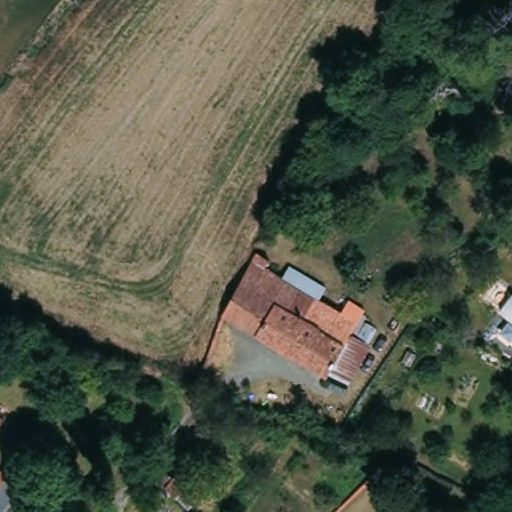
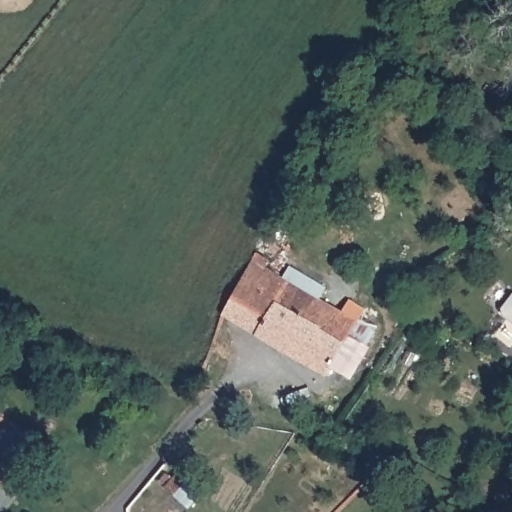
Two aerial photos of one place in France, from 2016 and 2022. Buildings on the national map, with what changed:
unchanged [(351,375),(334,365),(328,373),(287,350),(223,313),(255,252),(269,261),(264,269),(283,277),(289,266),(326,288),(319,299),(342,311),(348,301),(364,310),(358,321),(375,332),(351,375)]
unchanged [(498,313),(497,307),(509,293),(512,296),(512,324),(498,313)]
unchanged [(0,423),(0,415),(4,417),(0,423)]
unchanged [(123,460),(107,454),(113,438),(129,444),(123,460)]
unchanged [(0,484),(0,470),(7,474),(0,484)]
unchanged [(201,496),(189,508),(159,480),(165,474),(171,479),(177,473),(201,496)]

